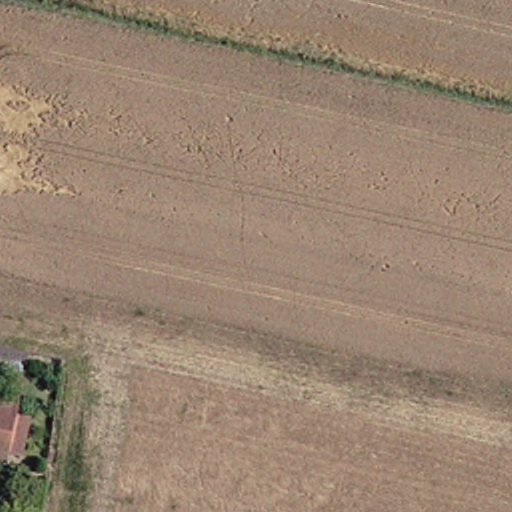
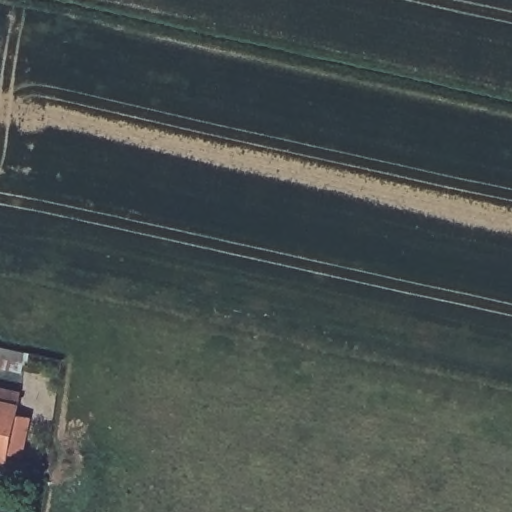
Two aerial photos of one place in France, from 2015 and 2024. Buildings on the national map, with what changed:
unchanged [(17,459),(4,457),(1,467),(0,467),(0,394),(16,397),(11,421),(25,424),(17,459)]

